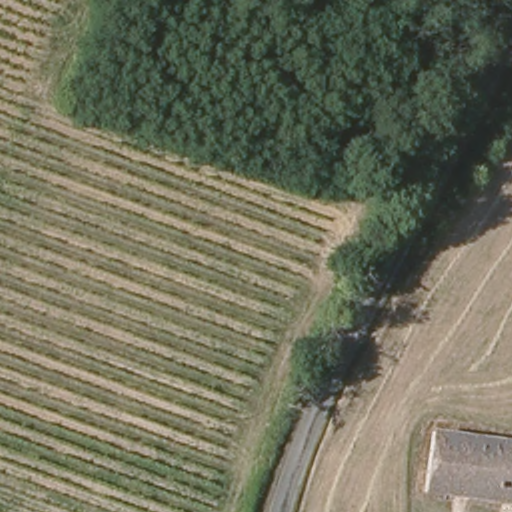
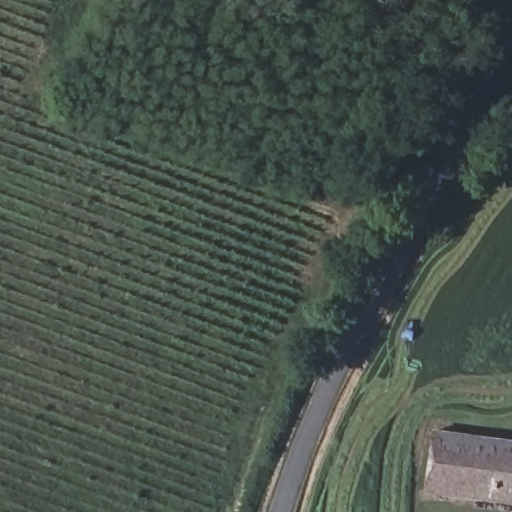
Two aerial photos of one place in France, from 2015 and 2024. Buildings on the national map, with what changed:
unchanged [(424,495),(431,429),(512,440),(512,507),(424,495)]

